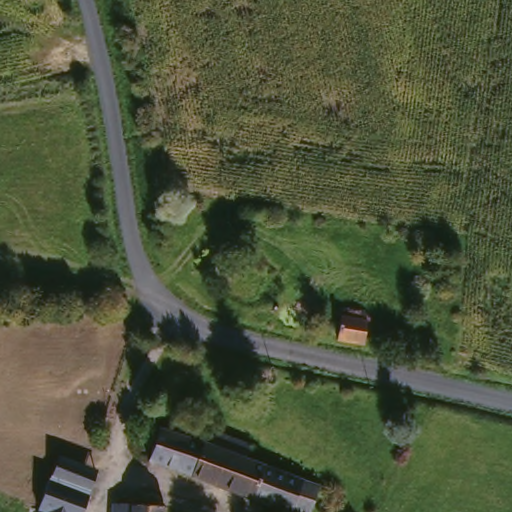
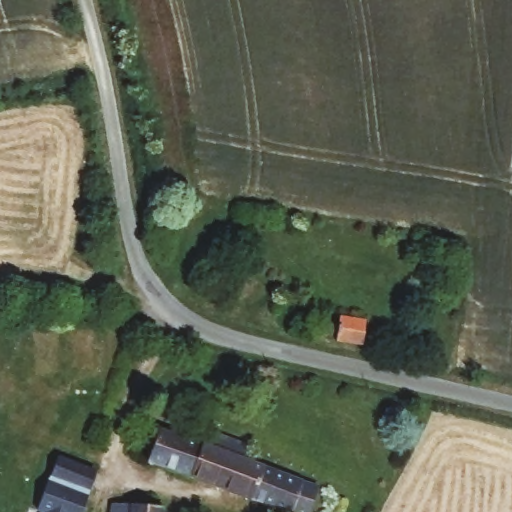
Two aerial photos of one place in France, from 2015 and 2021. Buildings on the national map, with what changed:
unchanged [(338,317),(364,322),(359,346),(332,338),(338,317)]
unchanged [(215,443),(247,455),(242,468),(319,497),(313,512),(268,512),(147,464),(157,436),(210,455),(215,443)]
unchanged [(97,465),(89,488),(49,475),(59,451),(97,465)]
unchanged [(80,512),(69,512),(48,504),(40,502),(41,497),(49,475),(89,488),(80,512)]
unchanged [(45,512),(48,504),(69,512),(45,512)]
unchanged [(164,508),(163,512),(129,512),(129,508),(164,508)]

